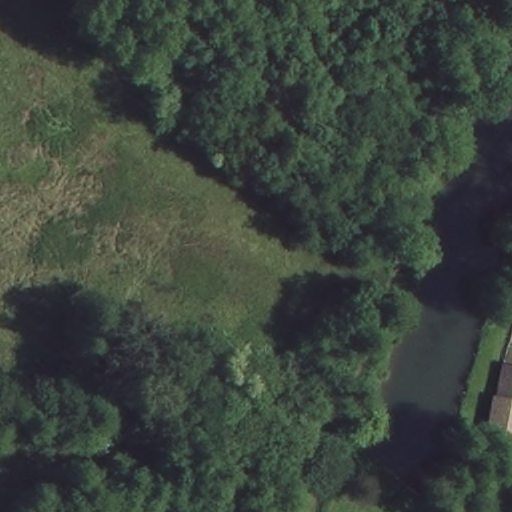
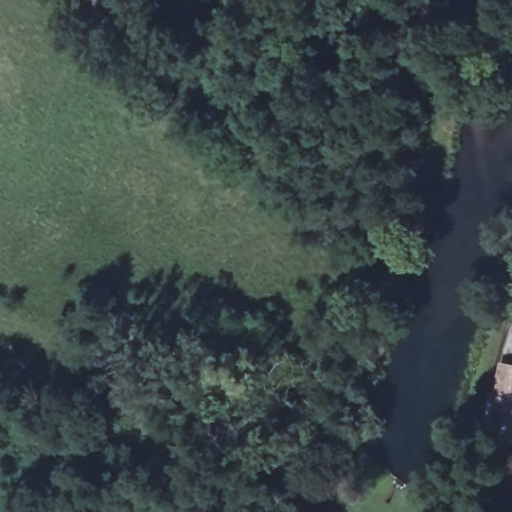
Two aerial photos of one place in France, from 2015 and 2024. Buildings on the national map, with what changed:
unchanged [(488,448),(487,409),(495,408),(495,375),(508,375),(512,375),(512,451),(488,448)]

